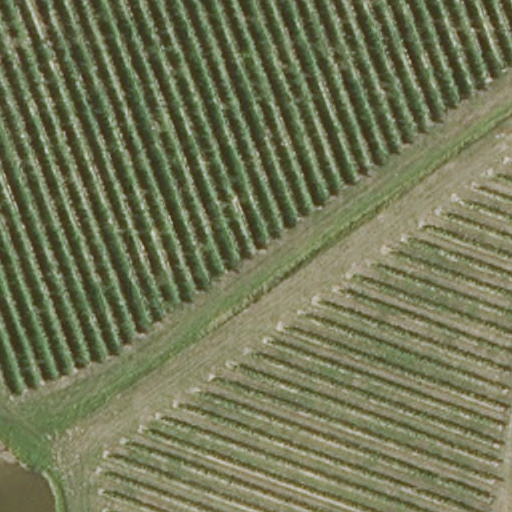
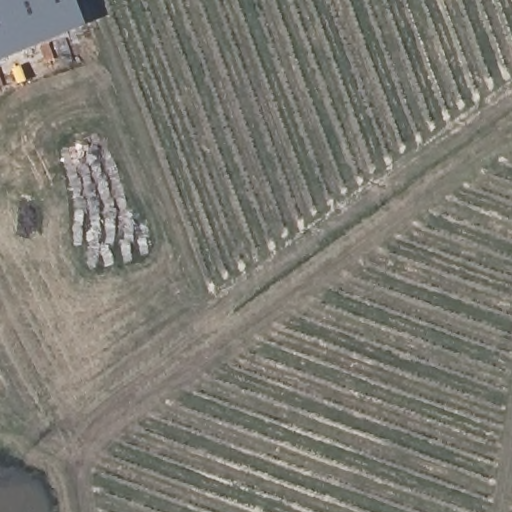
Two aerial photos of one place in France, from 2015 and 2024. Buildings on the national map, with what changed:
new [(79,23),(0,56),(0,0),(70,0),(79,23)]

